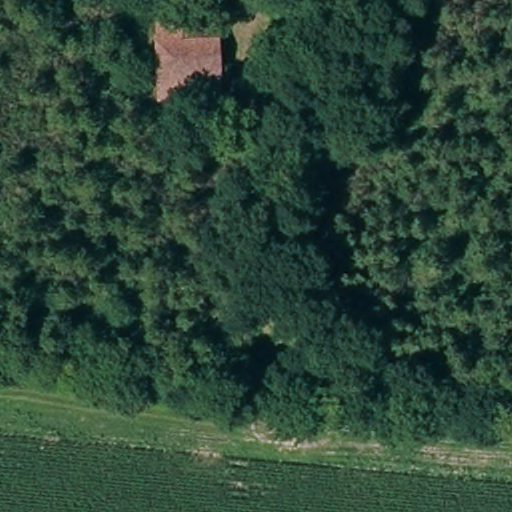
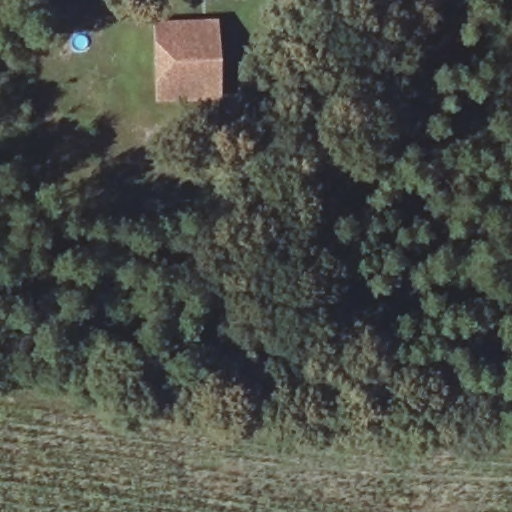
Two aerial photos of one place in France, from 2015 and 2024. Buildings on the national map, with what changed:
unchanged [(155,43),(219,44),(217,97),(154,96),(155,43)]

